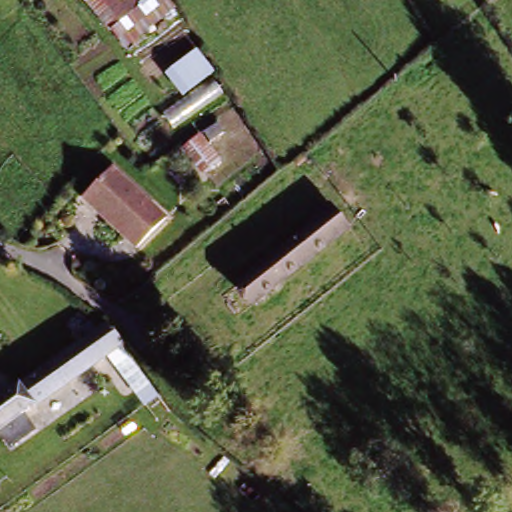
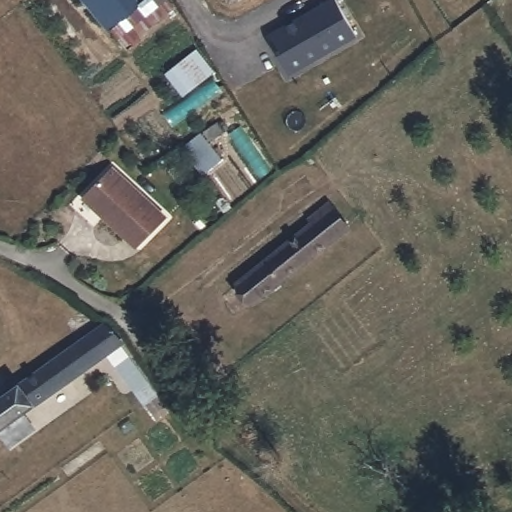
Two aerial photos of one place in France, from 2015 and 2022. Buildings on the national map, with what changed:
unchanged [(113,44),(83,0),(154,0),(162,11),(113,44)]
new [(327,0),(338,0),(356,33),(287,69),(268,31),(327,0)]
new [(195,52),(208,72),(183,89),(170,68),(195,52)]
unchanged [(196,180),(173,152),(201,131),(224,161),(196,180)]
unchanged [(105,211),(86,191),(112,166),(162,218),(132,246),(101,214),(105,211)]
unchanged [(330,210),(348,233),(255,306),(240,286),(313,230),(310,225),(330,210)]
unchanged [(15,444),(5,429),(0,432),(0,396),(105,321),(121,346),(119,348),(144,384),(132,392),(107,356),(22,416),(32,431),(15,444)]
unchanged [(155,399),(147,404),(138,391),(145,386),(155,399)]

